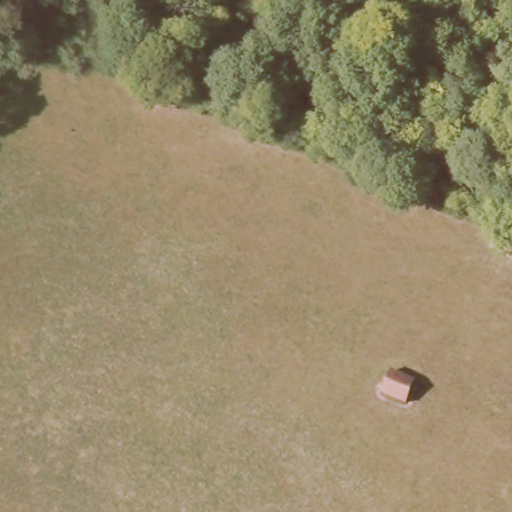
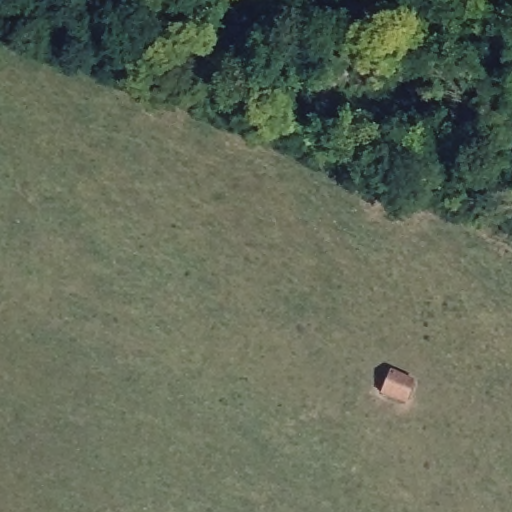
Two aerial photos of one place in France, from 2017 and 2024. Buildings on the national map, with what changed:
unchanged [(410,381),(403,400),(380,391),(386,372),(410,381)]

